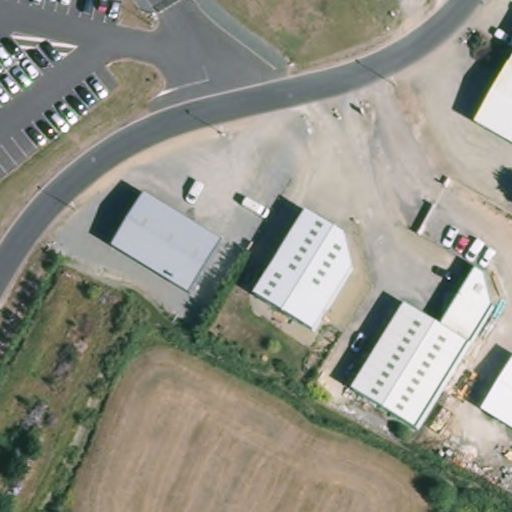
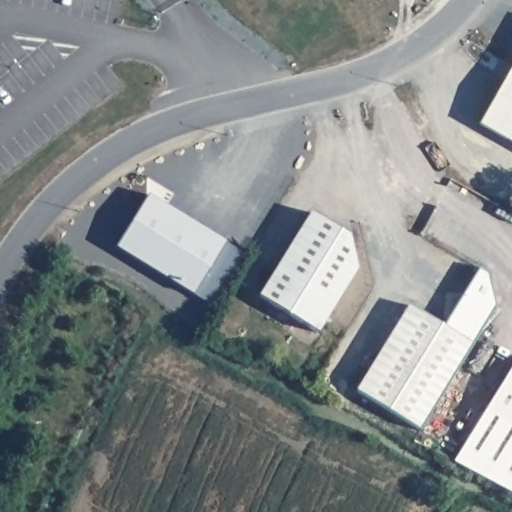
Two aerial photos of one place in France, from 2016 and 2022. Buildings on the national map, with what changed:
unchanged [(512,63),(512,66),(511,65),(512,63)]
unchanged [(477,125),(511,65),(512,66),(512,144),(477,125)]
unchanged [(147,195),(224,240),(190,294),(115,247),(147,195)]
unchanged [(346,233),(355,267),(316,331),(259,296),(311,211),(346,233)]
unchanged [(443,325),(478,267),(486,272),(495,305),(420,430),(356,391),(409,305),(443,325)]
unchanged [(512,365),(512,427),(483,409),(512,365)]
new [(452,461),(483,409),(512,427),(512,492),(452,461)]

